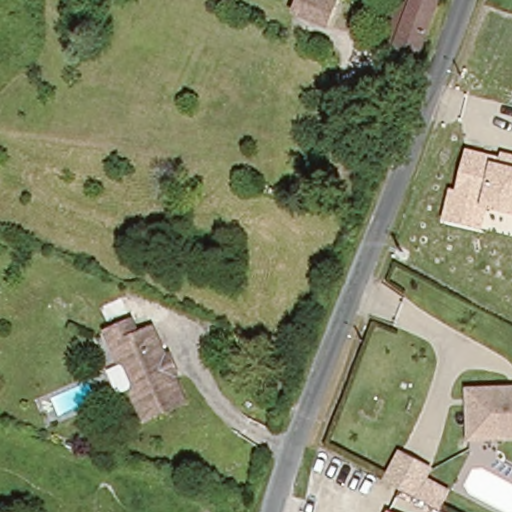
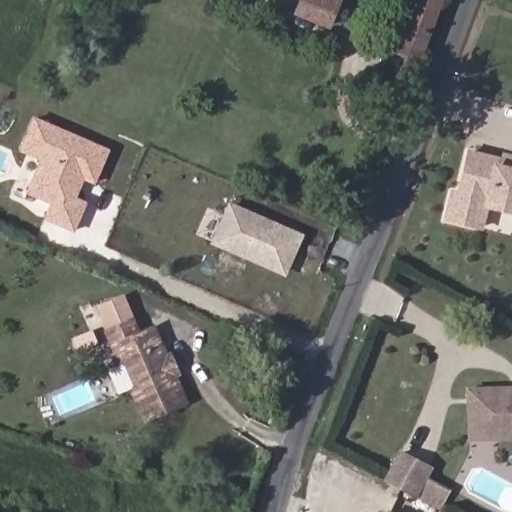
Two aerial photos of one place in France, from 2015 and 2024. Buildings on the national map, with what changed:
unchanged [(326,26),(296,15),(302,0),(336,0),(326,26)]
unchanged [(411,0),(444,0),(418,69),(388,57),(411,0)]
new [(83,180),(76,198),(86,203),(74,232),(44,219),(50,203),(24,193),(39,160),(19,151),(32,117),(109,149),(94,184),(83,180)]
unchanged [(487,209),(482,232),(441,223),(450,189),(455,190),(465,148),(499,157),(500,152),(512,154),(512,215),(487,209)]
new [(229,202),(304,235),(285,276),(209,245),(229,202)]
unchanged [(109,335),(104,325),(123,315),(128,325),(109,335)]
unchanged [(132,394),(138,391),(126,368),(121,370),(107,341),(131,328),(139,344),(153,336),(166,364),(171,362),(177,376),(172,378),(184,403),(147,423),(132,394)]
unchanged [(469,423),(468,389),(512,387),(512,438),(498,439),(470,440),(469,423)]
unchanged [(430,469),(414,497),(384,480),(400,452),(430,469)]
unchanged [(390,512),(386,512),(386,511),(390,512)]

